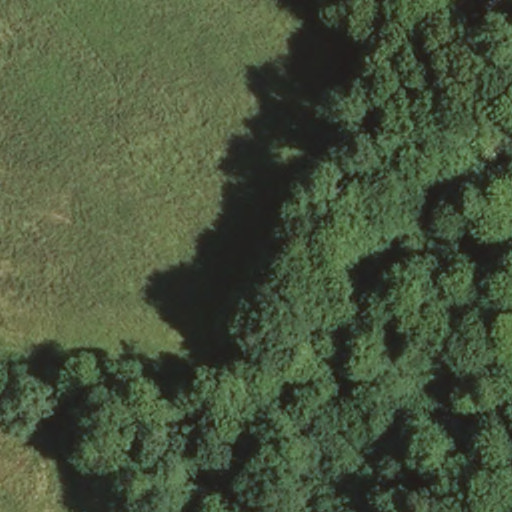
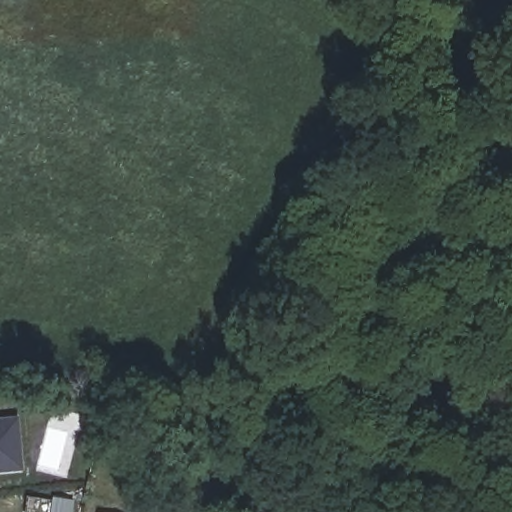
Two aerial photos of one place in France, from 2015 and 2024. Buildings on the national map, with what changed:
new [(0,468),(0,419),(20,418),(21,437),(24,466),(0,468)]

